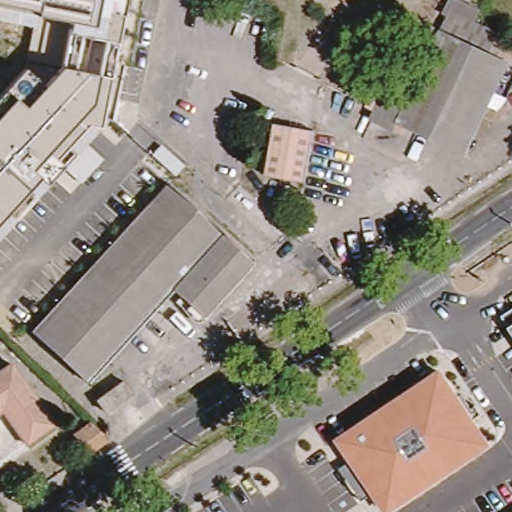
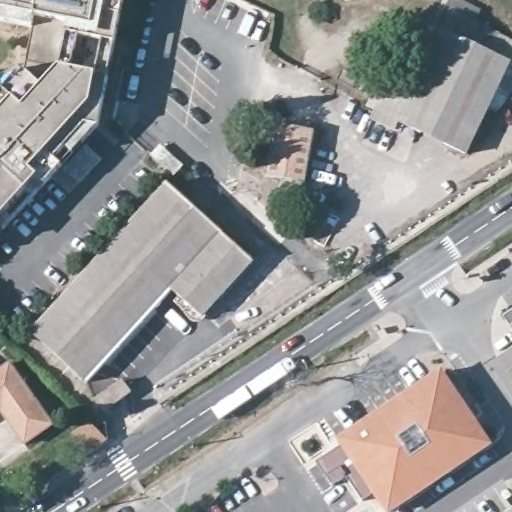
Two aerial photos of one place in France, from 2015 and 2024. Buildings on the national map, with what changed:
unchanged [(23,70),(32,26),(0,20),(0,0),(123,0),(99,128),(0,233),(0,94),(23,70)]
unchanged [(413,93),(450,14),(445,12),(451,0),(453,0),(480,13),(474,25),(499,36),(491,54),(511,64),(467,157),(398,124),(413,93)]
unchanged [(395,132),(372,122),(390,82),(413,93),(398,124),(395,132)]
unchanged [(266,178),(275,126),(314,133),(305,185),(266,178)]
unchanged [(247,262),(197,318),(167,291),(83,384),(26,333),(162,184),(247,262)]
unchanged [(512,310),(512,328),(505,316),(512,310)]
unchanged [(5,365),(47,424),(20,444),(0,416),(0,368),(5,365)]
unchanged [(491,451),(395,512),(379,512),(336,442),(443,378),(491,451)]
unchanged [(127,393),(99,414),(90,402),(118,381),(127,393)]
unchanged [(82,453),(69,435),(86,423),(103,439),(82,453)]

